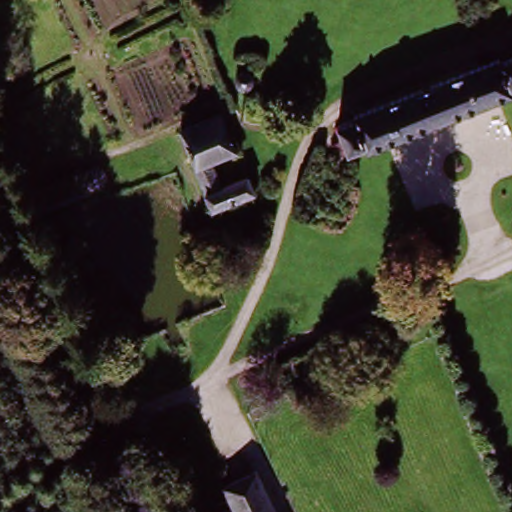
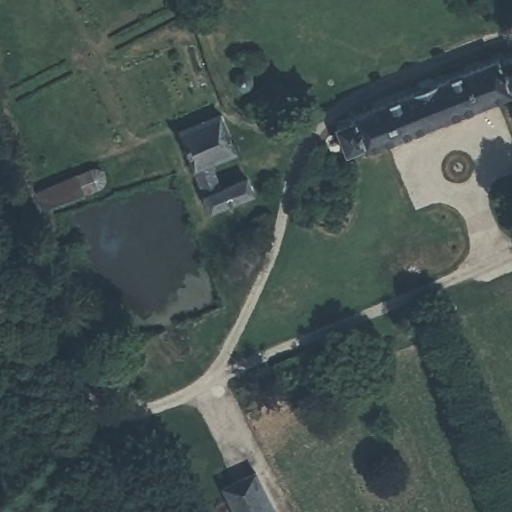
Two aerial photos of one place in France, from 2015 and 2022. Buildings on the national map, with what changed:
unchanged [(495,64),(497,69),(512,66),(512,97),(505,100),(507,105),(365,156),(362,149),(345,155),(335,129),(354,121),(352,116),(495,64)]
unchanged [(250,81),(250,82),(250,83),(250,84),(249,85),(247,86),(247,87),(245,88),(243,88),(242,88),(240,88),(238,88),(237,87),(236,87),(235,86),(234,85),(234,83),(233,82),(232,81),(232,80),(232,79),(232,77),(233,76),(234,75),(234,74),(235,73),(236,72),(237,71),(238,71),(240,70),(242,70),(244,70),(245,71),(247,72),(248,72),(249,73),(250,74),(250,76),(250,77),(250,78),(251,79),(250,81)]
unchanged [(215,117),(232,154),(205,165),(216,191),(243,181),(250,196),(207,214),(172,134),(215,117)]
unchanged [(95,168),(98,167),(102,168),(105,169),(106,170),(108,172),(109,175),(109,178),(109,182),(107,184),(105,187),(42,215),(34,195),(95,168)]
unchanged [(255,478),(271,512),(232,512),(224,492),(255,478)]

